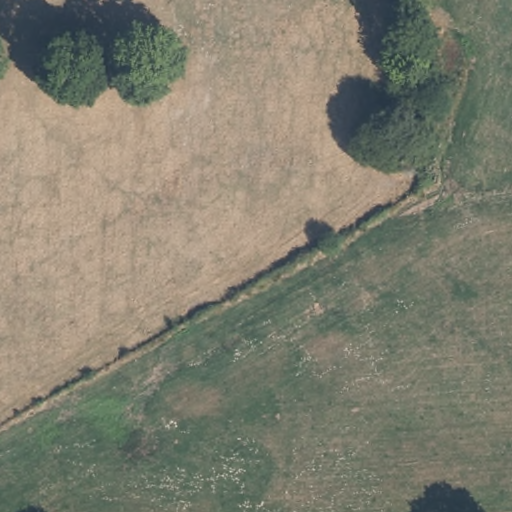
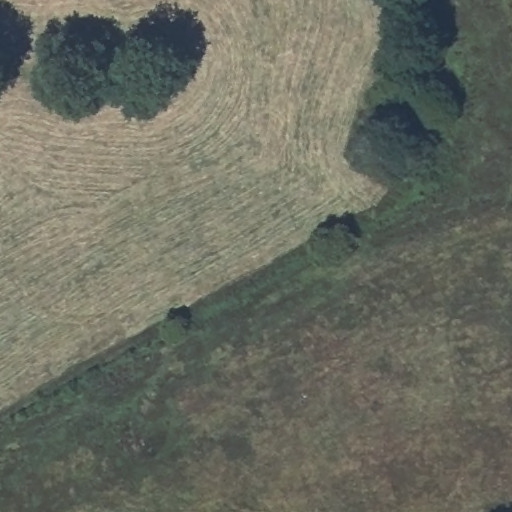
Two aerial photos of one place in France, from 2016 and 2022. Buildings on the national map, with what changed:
[]

